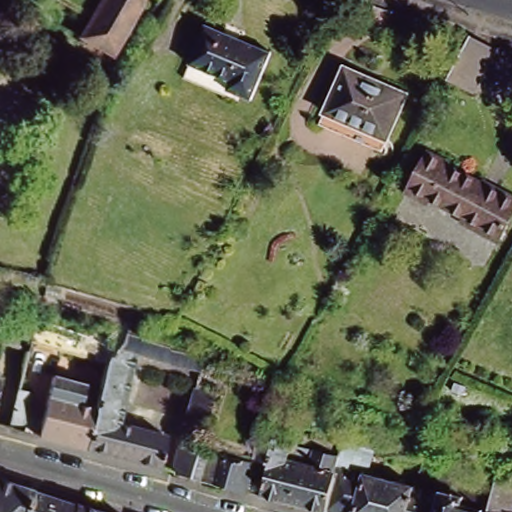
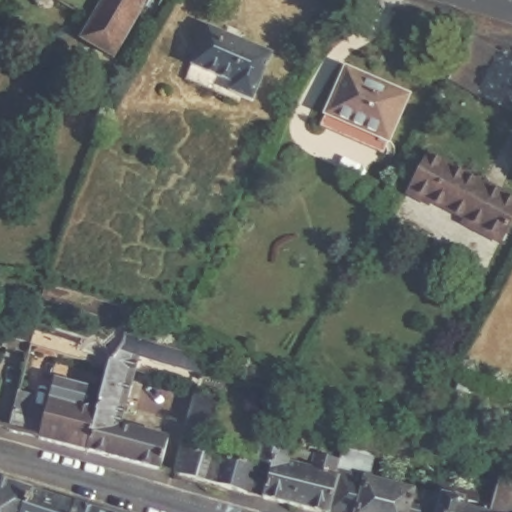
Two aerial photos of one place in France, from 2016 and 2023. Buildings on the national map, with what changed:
unchanged [(140,6),(110,59),(77,39),(99,0),(142,0),(139,5),(140,6)]
unchanged [(275,49),(255,96),(232,86),(236,77),(195,60),(210,22),(275,49)]
unchanged [(469,36),(492,50),(471,91),(447,78),(469,36)]
unchanged [(324,115),(329,104),(349,59),(410,86),(390,130),(385,142),(324,115)]
unchanged [(456,163),(455,165),(506,191),(507,188),(512,190),(512,228),(506,239),(470,221),(472,217),(440,199),(437,205),(415,194),(435,153),(456,163)]
unchanged [(28,343),(27,348),(2,342),(5,334),(29,340),(28,343)]
unchanged [(125,335),(205,356),(202,368),(154,359),(118,353),(125,335)]
unchanged [(53,368),(99,376),(104,352),(154,359),(133,422),(174,432),(166,466),(42,436),(53,368)]
unchanged [(197,382),(240,393),(230,436),(265,448),(252,490),(176,471),(197,382)]
unchanged [(32,393),(22,431),(7,427),(7,425),(16,389),(32,393)]
unchanged [(292,404),(287,412),(276,406),(281,397),(292,404)]
unchanged [(282,453),(343,469),(428,483),(424,512),(320,512),(272,500),(282,453)]
unchanged [(20,512),(0,512),(0,475),(30,485),(20,512)]
unchanged [(490,497),(496,477),(512,479),(512,512),(438,512),(442,490),(490,497)]
unchanged [(30,485),(76,500),(71,512),(20,512),(30,485)]
unchanged [(76,500),(114,512),(71,512),(76,500)]

